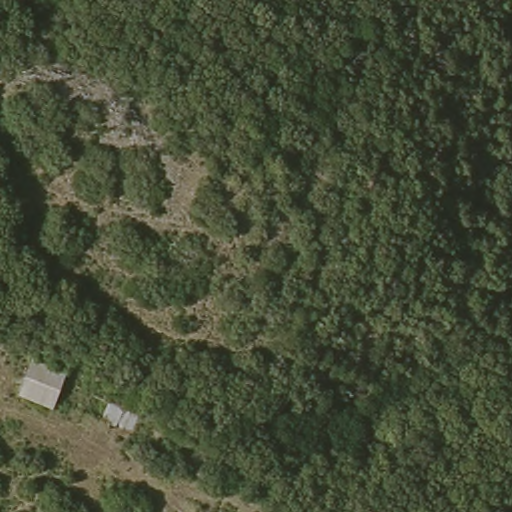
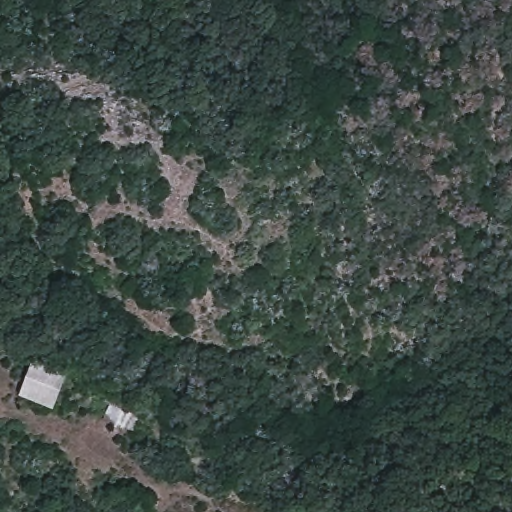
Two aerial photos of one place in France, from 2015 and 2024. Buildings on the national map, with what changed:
unchanged [(71,367),(61,411),(19,396),(35,356),(71,367)]
unchanged [(115,439),(96,407),(127,388),(146,420),(115,439)]

